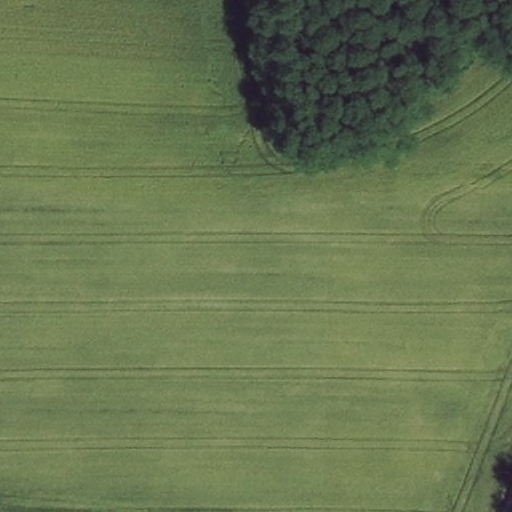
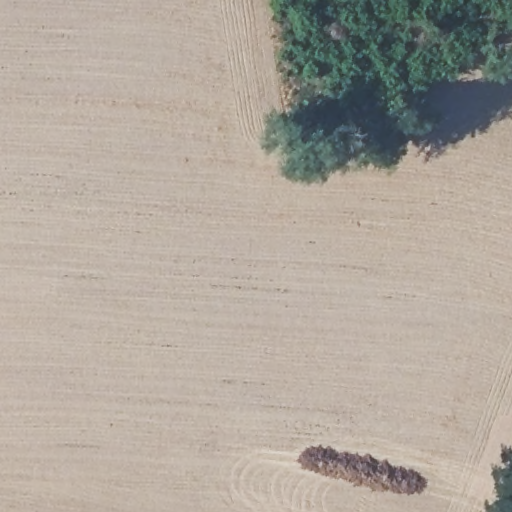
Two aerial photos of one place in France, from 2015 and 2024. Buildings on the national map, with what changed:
[]

